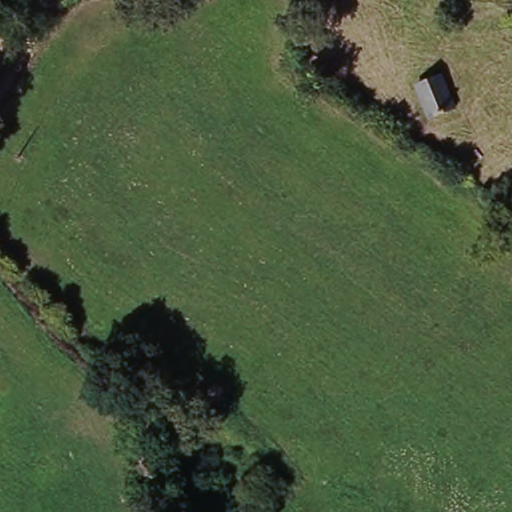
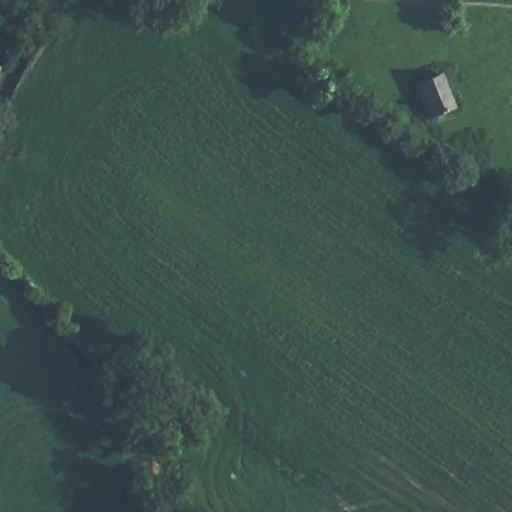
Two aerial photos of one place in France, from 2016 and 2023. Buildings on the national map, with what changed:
unchanged [(441,74),(461,112),(438,127),(417,87),(441,74)]

